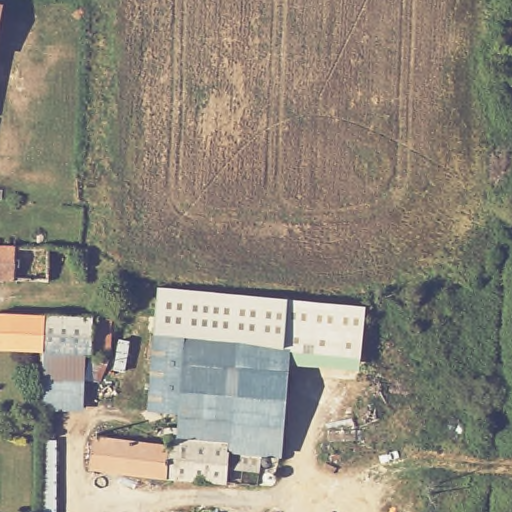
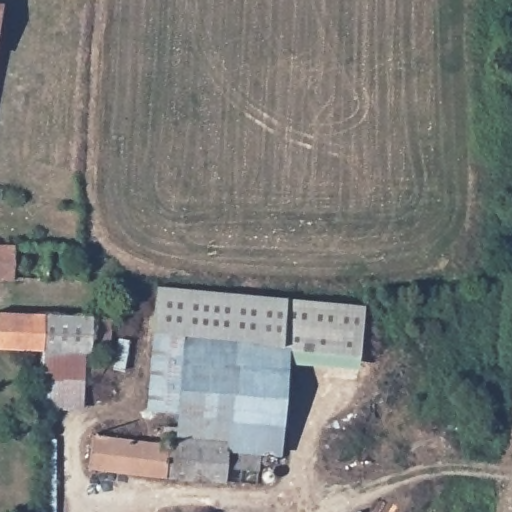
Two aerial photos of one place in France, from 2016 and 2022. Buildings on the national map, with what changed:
unchanged [(0,36),(0,0),(7,0),(0,36)]
unchanged [(0,281),(0,246),(56,248),(55,282),(0,281)]
unchanged [(370,304),(367,352),(292,346),(290,366),(299,367),(293,425),(242,422),(253,337),(200,332),(166,330),(170,285),(370,304)]
unchanged [(49,384),(32,383),(32,351),(0,350),(2,320),(2,306),(54,310),(51,353),(49,384)]
unchanged [(114,358),(114,357),(51,353),(54,310),(119,315),(116,358),(114,358)]
unchanged [(157,407),(165,335),(166,330),(200,332),(190,411),(157,407)]
unchanged [(99,435),(105,435),(172,442),(174,425),(188,426),(190,411),(200,332),(253,337),(242,422),(239,443),(239,450),(268,452),(265,485),(94,468),(99,435)]
unchanged [(92,381),(89,414),(47,411),(49,384),(51,353),(114,357),(114,358),(111,383),(92,381)]

